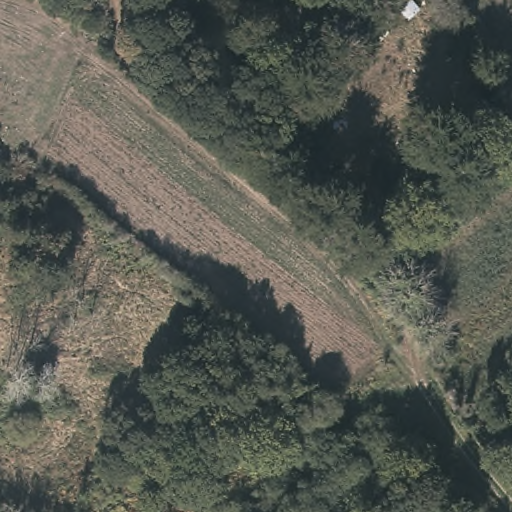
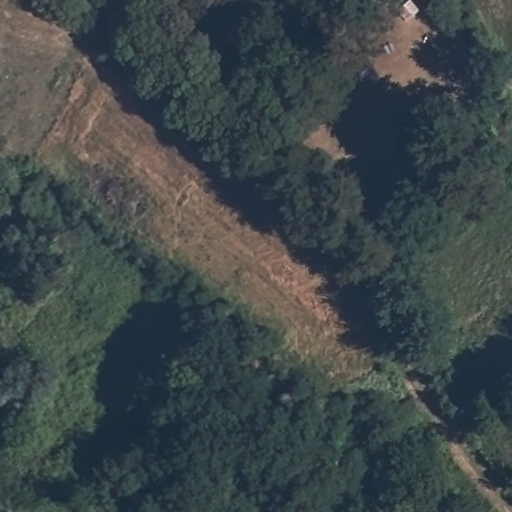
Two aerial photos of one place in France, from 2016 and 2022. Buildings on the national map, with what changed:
unchanged [(395,9),(405,0),(416,0),(423,8),(410,22),(395,9)]
unchanged [(446,100),(464,90),(478,117),(461,126),(446,100)]
unchanged [(301,138),(286,119),(305,104),(321,125),(301,138)]

